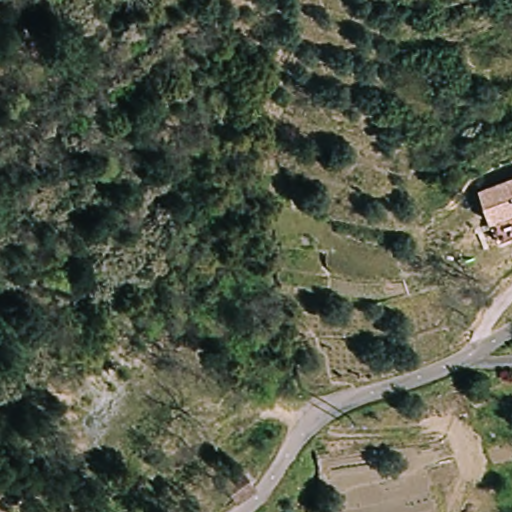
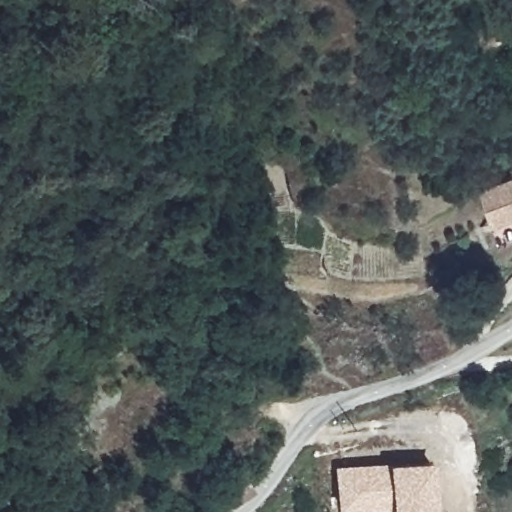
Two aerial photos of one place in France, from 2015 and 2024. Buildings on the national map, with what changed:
unchanged [(479,188),(485,186),(512,176),(512,235),(499,239),(497,240),(479,188)]
new [(338,509),(336,465),(389,461),(434,458),(438,512),(392,512),(392,505),(338,509)]
unchanged [(244,500),(228,485),(243,470),(258,485),(244,500)]

